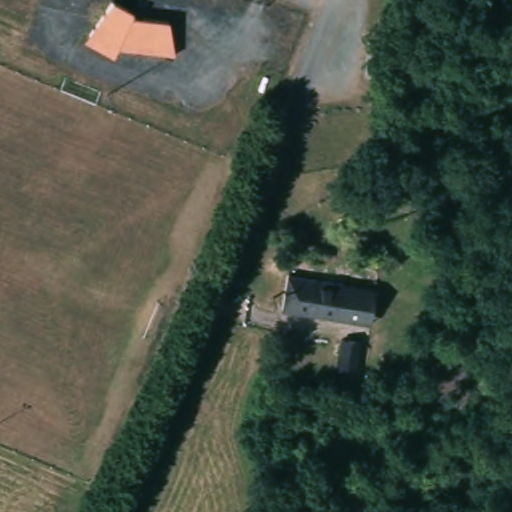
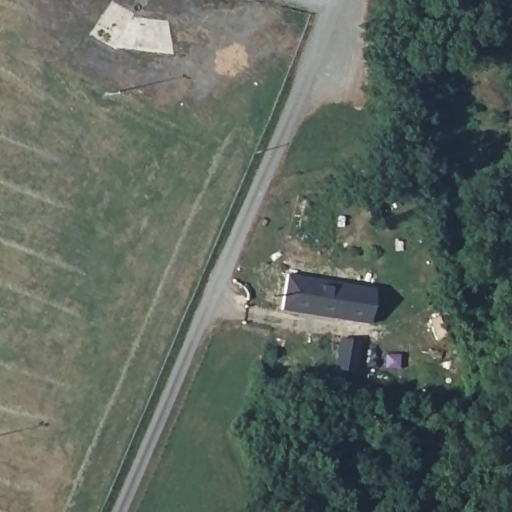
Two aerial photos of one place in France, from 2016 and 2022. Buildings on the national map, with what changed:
unchanged [(83,45),(88,39),(111,5),(134,17),(149,19),(148,24),(170,27),(174,60),(117,52),(115,56),(113,61),(83,45)]
unchanged [(358,285),(354,320),(299,316),(303,280),(358,285)]

